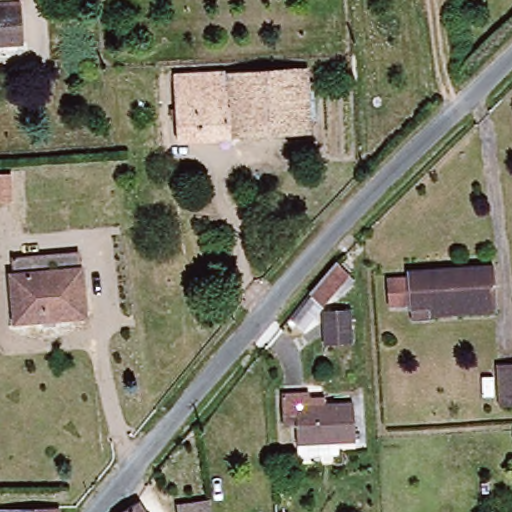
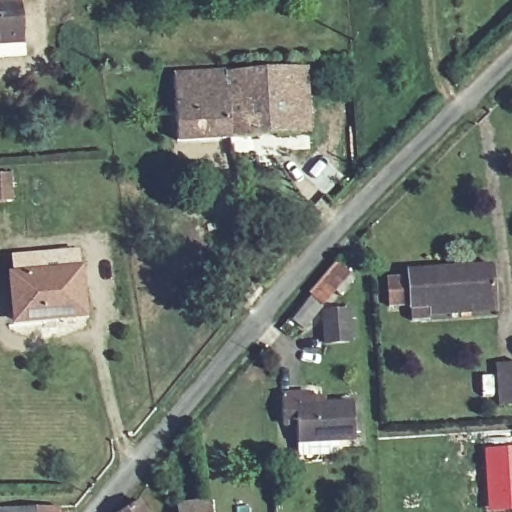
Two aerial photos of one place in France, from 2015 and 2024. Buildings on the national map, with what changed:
unchanged [(0,45),(0,0),(22,0),(25,43),(0,45)]
unchanged [(306,135),(176,141),(172,72),(302,67),(306,135)]
unchanged [(0,181),(14,181),(15,208),(0,208),(0,181)]
unchanged [(14,324),(12,312),(7,262),(75,255),(82,317),(14,324)]
unchanged [(312,297),(340,266),(345,258),(362,274),(357,281),(353,277),(326,309),(312,297)]
unchanged [(430,322),(410,322),(408,307),(387,308),(386,281),(408,280),(408,276),(492,272),(495,310),(494,320),(430,322)]
unchanged [(322,316),(347,315),(349,347),(323,349),(322,316)]
unchanged [(500,414),(497,371),(512,371),(512,413),(500,414)]
unchanged [(350,442),(292,446),(291,426),(277,427),(274,397),(300,395),(302,397),(315,397),(316,407),(348,406),(350,442)]
new [(512,444),(512,510),(487,511),(484,446),(512,444)]
unchanged [(138,497),(147,512),(117,512),(138,497)]
unchanged [(0,509),(56,507),(55,512),(0,512),(0,509)]
unchanged [(208,510),(208,512),(194,512),(208,510)]

